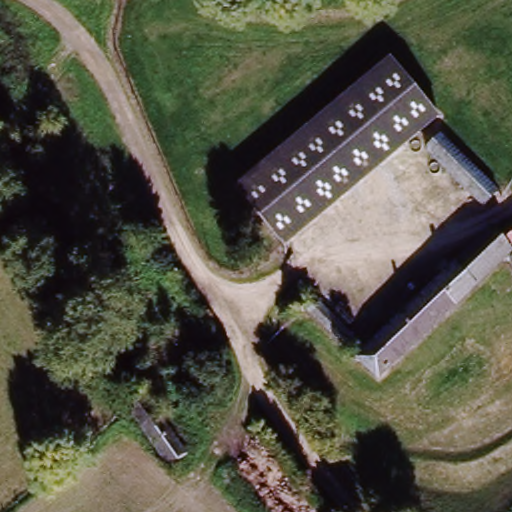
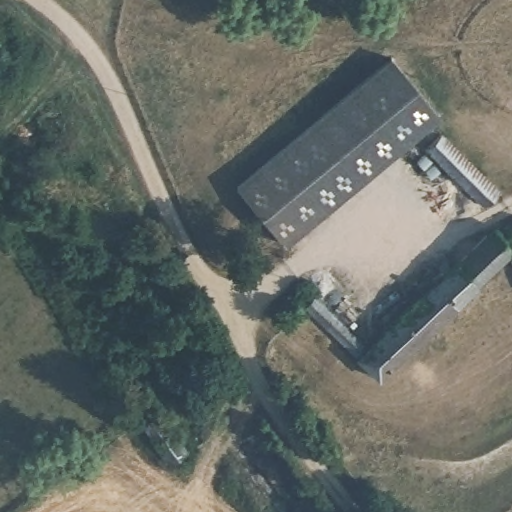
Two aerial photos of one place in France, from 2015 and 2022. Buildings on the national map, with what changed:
unchanged [(394,68),(438,125),(282,248),(236,191),(394,68)]
unchanged [(436,145),(492,200),(481,212),(423,158),(436,145)]
unchanged [(369,350),(497,233),(502,238),(512,228),(512,261),(380,382),(358,359),(309,308),(319,298),(369,350)]
unchanged [(142,391),(188,456),(167,471),(121,406),(142,391)]

